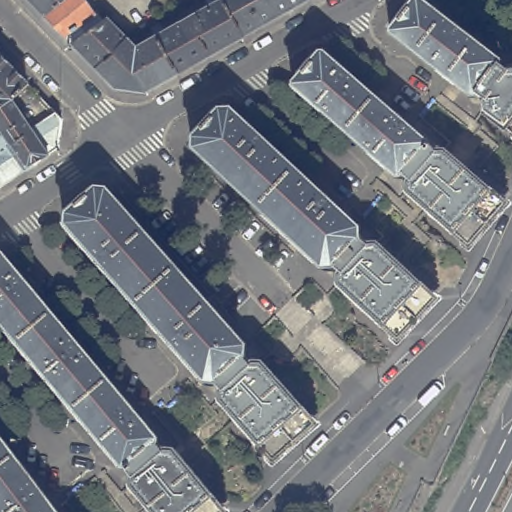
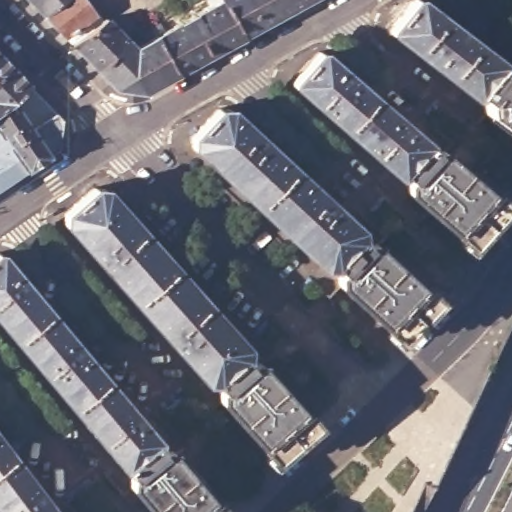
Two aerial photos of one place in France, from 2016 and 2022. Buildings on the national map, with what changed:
unchanged [(67,0),(48,16),(33,0),(67,0)]
unchanged [(67,0),(88,0),(89,1),(98,15),(68,36),(48,16),(67,0)]
unchanged [(225,0),(247,36),(180,74),(159,37),(225,0)]
unchanged [(225,0),(310,0),(247,36),(225,0)]
unchanged [(480,101),(481,100),(472,94),(469,94),(389,33),(389,30),(412,0),(418,0),(455,29),(460,32),(494,60),(495,64),(503,70),(512,68),(512,135),(481,110),(480,101)]
unchanged [(118,88),(76,44),(104,24),(110,20),(139,49),(149,43),(159,37),(180,74),(148,92),(118,88)]
unchanged [(13,100),(0,109),(0,52),(30,83),(13,100)]
unchanged [(406,190),(405,182),(407,180),(398,174),(395,175),(291,86),(292,81),(315,54),(319,53),(434,151),(440,149),(502,203),(467,243),(406,190)]
unchanged [(0,109),(13,100),(30,83),(65,119),(62,149),(30,170),(0,131),(0,109)]
unchanged [(337,278),(336,269),(337,268),(329,260),(319,260),(191,142),(191,131),(217,104),(226,103),(355,223),(355,230),(366,240),(373,239),(432,293),(395,333),(337,278)]
unchanged [(28,170),(0,190),(0,131),(30,170),(28,170)]
unchanged [(217,396),(218,389),(208,377),(202,378),(62,219),(63,209),(92,183),(100,183),(241,342),(240,351),(247,358),(256,357),(311,419),(270,455),(217,396)]
unchanged [(129,478),(0,325),(0,258),(153,439),(152,444),(159,452),(169,452),(221,512),(149,512),(129,488),(129,478)]
unchanged [(0,443),(52,512),(0,512),(0,443)]

